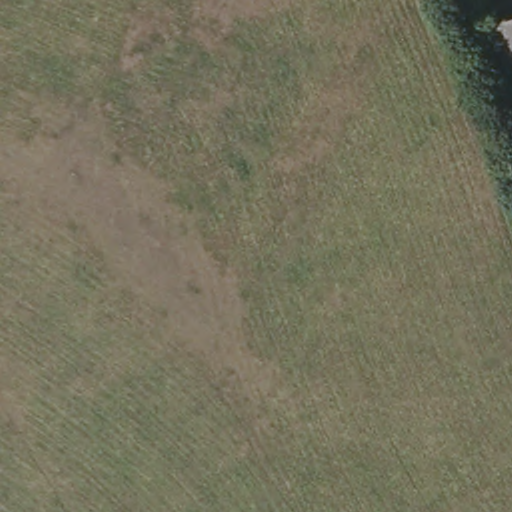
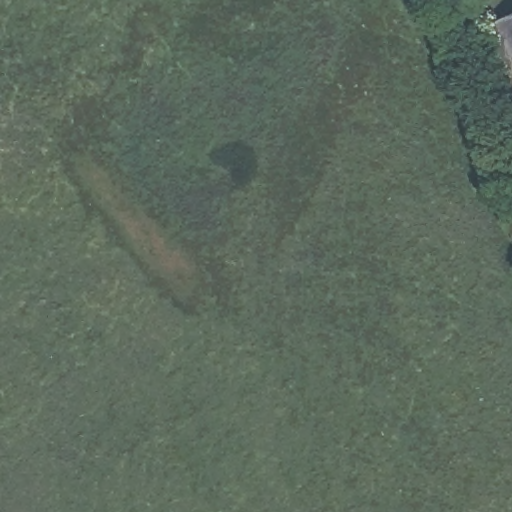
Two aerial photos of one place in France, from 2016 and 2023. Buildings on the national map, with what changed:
unchanged [(508,25),(512,24),(512,35),(508,25)]
unchanged [(508,25),(512,35),(512,76),(495,30),(508,25)]

